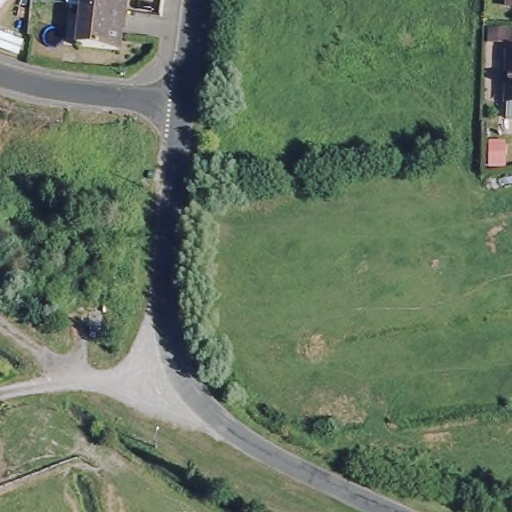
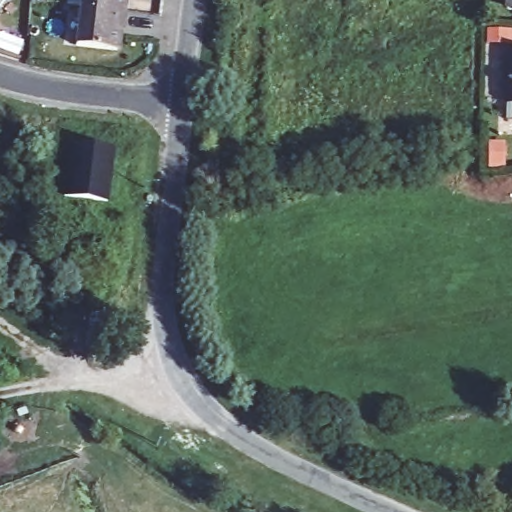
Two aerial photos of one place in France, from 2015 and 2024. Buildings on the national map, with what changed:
unchanged [(0,0),(6,0),(0,8),(0,0)]
unchanged [(80,40),(85,0),(112,3),(131,6),(130,26),(122,25),(120,45),(80,41),(80,40)]
unchanged [(131,6),(112,3),(85,0),(132,0),(131,6)]
unchanged [(510,113),(510,45),(512,45),(512,113),(510,113)]
new [(76,194),(70,193),(71,189),(65,188),(70,143),(115,149),(108,203),(75,199),(76,194)]

